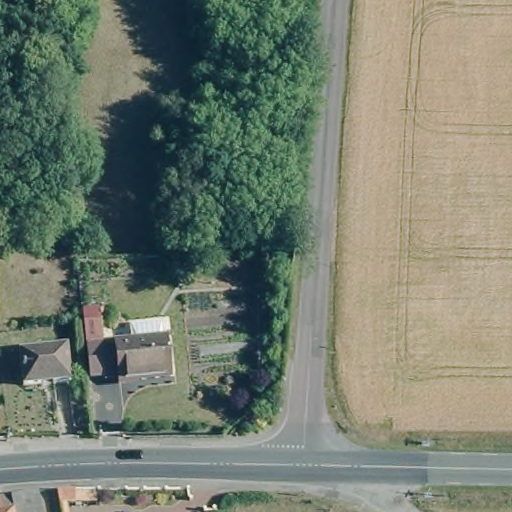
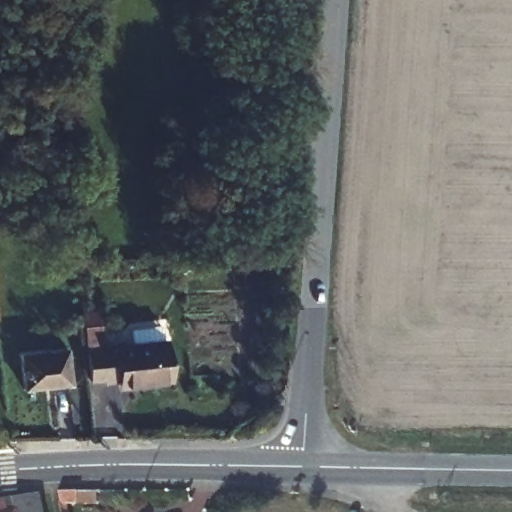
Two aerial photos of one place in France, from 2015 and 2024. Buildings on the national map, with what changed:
unchanged [(165,335),(170,373),(120,379),(119,374),(105,376),(105,373),(90,375),(83,321),(82,308),(98,307),(100,318),(102,342),(165,335)]
unchanged [(22,387),(19,352),(67,347),(70,383),(53,385),(39,386),(22,387)]
unchanged [(57,492),(75,492),(75,504),(60,504),(57,492)]
unchanged [(36,493),(40,512),(0,512),(0,500),(36,493)]

